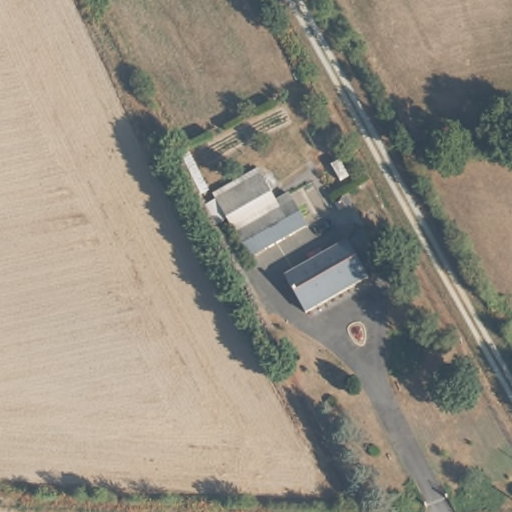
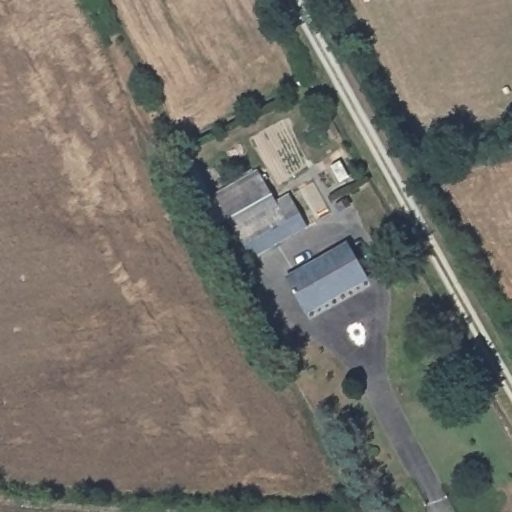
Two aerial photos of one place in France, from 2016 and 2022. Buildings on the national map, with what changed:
unchanged [(288,209),(244,232),(235,218),(228,222),(217,202),(282,167),(298,195),(283,202),(288,209)]
unchanged [(316,225),(258,256),(244,232),(288,209),(283,202),(298,195),(316,225)]
unchanged [(291,273),(348,240),(369,275),(310,307),(291,273)]

